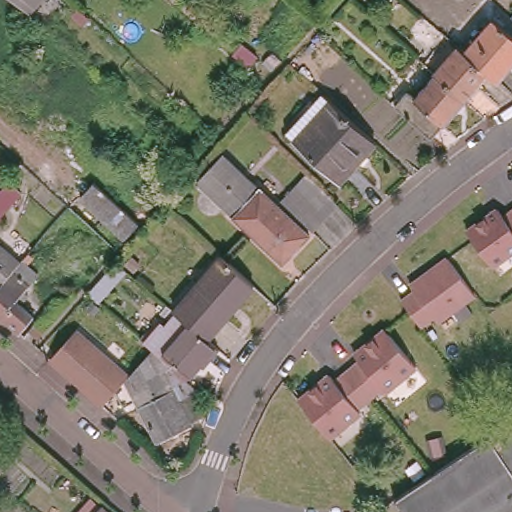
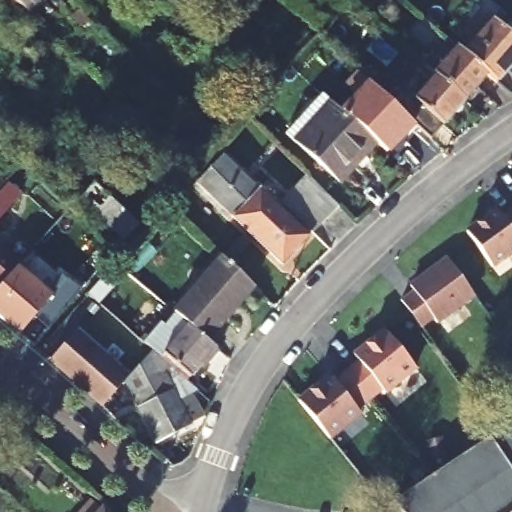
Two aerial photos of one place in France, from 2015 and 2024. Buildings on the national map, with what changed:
unchanged [(16,0),(36,0),(26,10),(16,0)]
unchanged [(512,39),(512,58),(492,80),(484,73),(459,52),(487,19),(512,39)]
unchanged [(446,54),(430,39),(436,32),(459,52),(484,73),(461,99),(432,74),(430,72),(446,54)]
new [(367,82),(391,106),(414,127),(387,157),(379,150),(336,112),(353,95),(343,87),(357,73),(367,82)]
unchanged [(404,91),(411,97),(432,74),(461,99),(426,138),(391,106),(404,91)]
unchanged [(311,161),(291,142),(281,132),(316,94),(325,102),(379,150),(345,189),(311,161)]
unchanged [(300,230),(274,258),(205,196),(229,164),(300,230)]
unchanged [(281,205),(295,189),(296,190),(307,178),(329,199),(317,212),(316,210),(301,226),(281,205)]
unchanged [(20,192),(0,216),(0,191),(8,182),(20,192)]
unchanged [(126,239),(81,198),(93,184),(140,224),(126,239)]
unchanged [(502,216),(512,209),(512,251),(492,266),(467,231),(497,209),(502,216)]
unchanged [(16,264),(0,283),(0,249),(16,264)]
unchanged [(30,258),(24,266),(35,276),(13,301),(30,317),(16,333),(0,319),(0,283),(16,264),(25,254),(30,258)]
unchanged [(251,288),(203,340),(172,315),(168,311),(219,257),(251,288)]
unchanged [(414,290),(410,285),(447,257),(475,294),(437,322),(434,317),(421,327),(401,300),(414,290)]
unchanged [(116,263),(126,272),(100,302),(90,294),(116,263)]
unchanged [(32,340),(22,331),(50,301),(60,309),(32,340)]
unchanged [(203,340),(214,350),(205,360),(202,358),(183,380),(163,362),(152,353),(168,333),(161,327),(172,315),(203,340)]
unchanged [(330,375),(335,380),(359,360),(355,354),(385,329),(416,366),(385,392),(383,388),(358,409),(360,412),(330,437),(299,400),(330,375)]
unchanged [(121,382),(100,408),(48,362),(73,332),(126,376),(121,382)]
unchanged [(190,386),(170,396),(185,427),(152,443),(121,382),(126,376),(148,350),(152,353),(163,362),(183,380),(190,386)]
unchanged [(391,493),(512,412),(512,502),(497,512),(404,512),(391,493)]
unchanged [(93,501),(105,512),(83,512),(93,501)]

